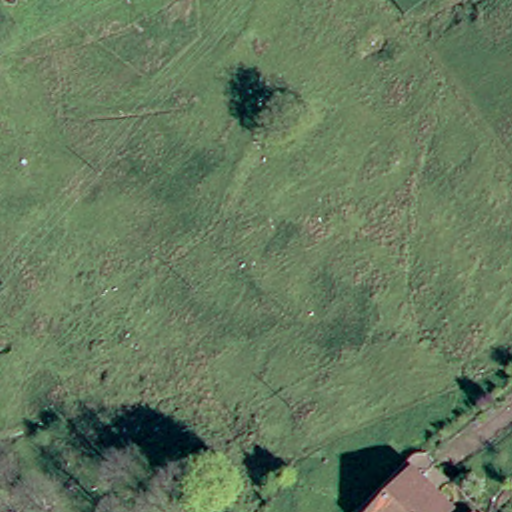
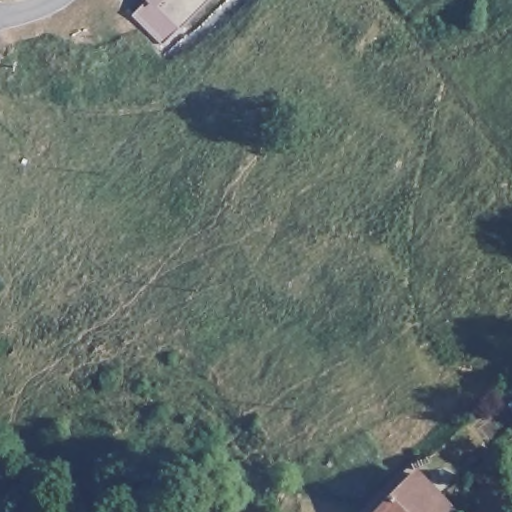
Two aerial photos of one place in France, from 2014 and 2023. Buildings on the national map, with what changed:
new [(147,0),(153,0),(181,28),(165,44),(133,14),(147,0)]
new [(182,29),(181,28),(153,0),(211,0),(182,29)]
unchanged [(447,512),(446,512),(369,512),(410,473),(447,512)]

